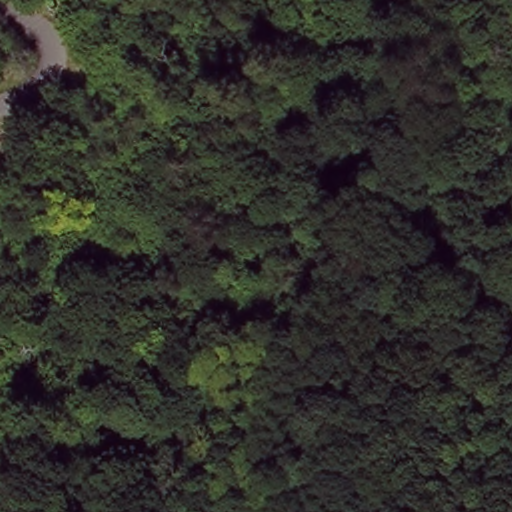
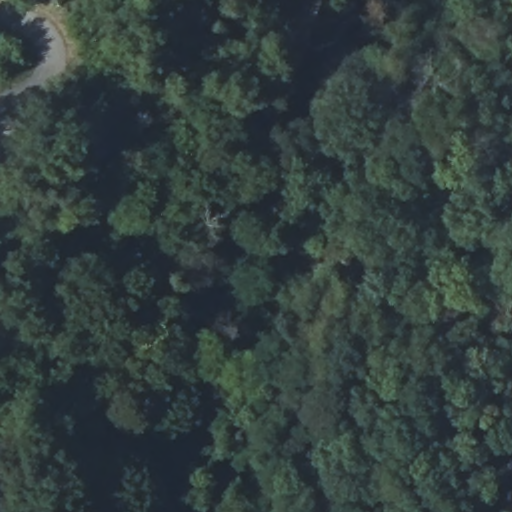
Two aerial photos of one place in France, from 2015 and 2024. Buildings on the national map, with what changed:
unchanged [(279,318),(253,310),(267,269),(291,280),(279,318)]

